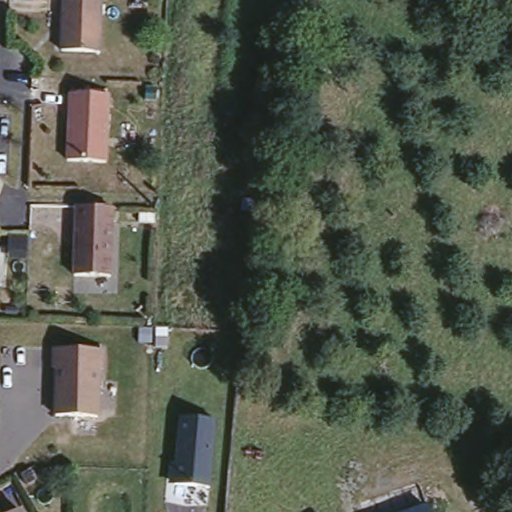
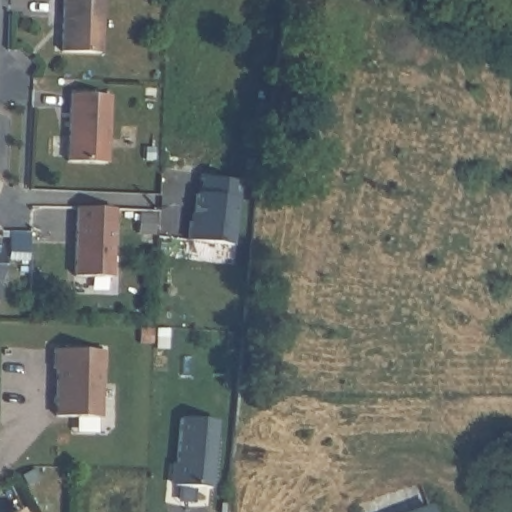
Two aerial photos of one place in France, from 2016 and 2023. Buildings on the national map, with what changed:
unchanged [(60,1),(60,0),(63,0),(60,1)]
unchanged [(101,56),(62,55),(65,0),(103,0),(101,56)]
unchanged [(109,101),(107,166),(68,166),(70,100),(109,101)]
new [(198,180),(237,185),(229,252),(185,246),(198,180)]
unchanged [(109,278),(73,278),(74,209),(111,210),(109,278)]
unchanged [(104,354),(102,372),(99,373),(98,421),(56,420),(57,370),(54,370),(55,352),(104,354)]
unchanged [(217,422),(212,489),(168,486),(170,462),(176,462),(180,419),(217,422)]
unchanged [(423,512),(398,512),(420,504),(423,512)]

